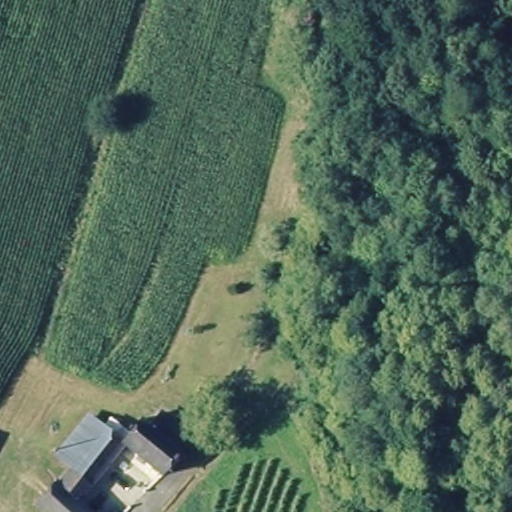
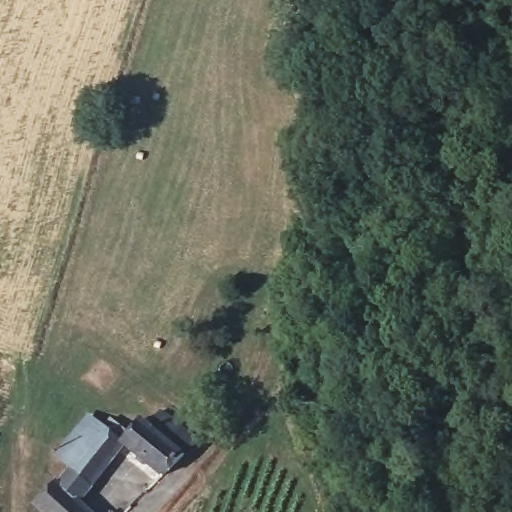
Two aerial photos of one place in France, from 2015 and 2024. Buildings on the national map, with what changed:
unchanged [(80,447),(70,439),(89,417),(99,424),(121,444),(145,418),(186,453),(162,479),(125,447),(76,501),(88,512),(48,512),(34,499),(80,447)]
unchanged [(124,495),(136,506),(129,512),(107,512),(124,495)]

